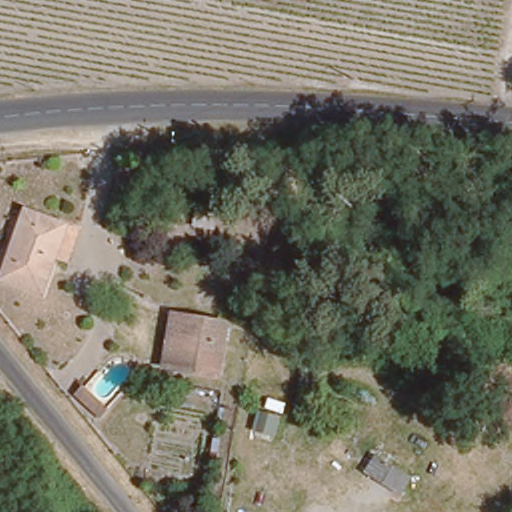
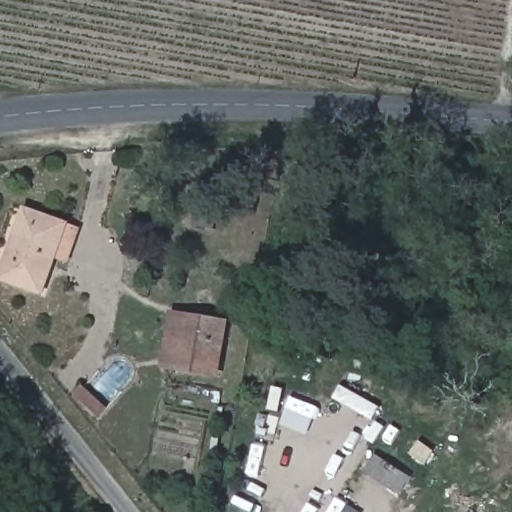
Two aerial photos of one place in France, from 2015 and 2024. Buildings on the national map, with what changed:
unchanged [(24,197),(69,216),(82,221),(69,260),(58,255),(45,291),(0,278),(0,261),(24,197)]
unchanged [(224,317),(215,376),(167,367),(176,310),(224,317)]
unchanged [(128,399),(120,407),(102,389),(97,385),(104,376),(128,399)]
unchanged [(411,475),(401,492),(366,472),(376,454),(411,475)]

